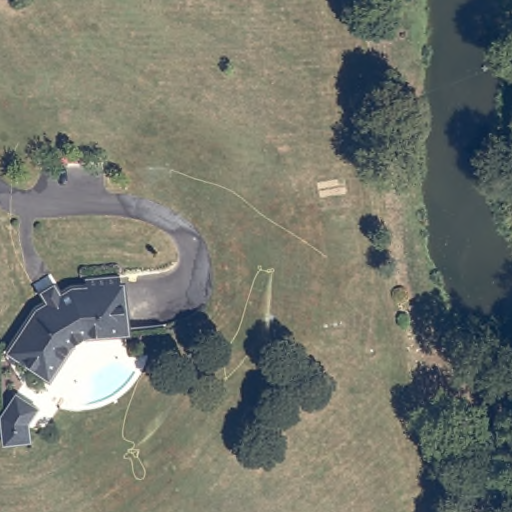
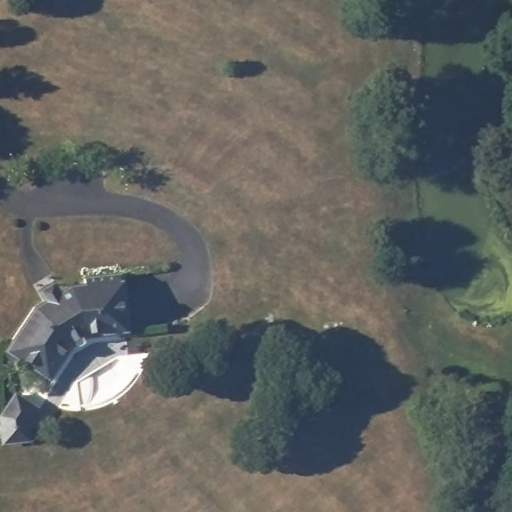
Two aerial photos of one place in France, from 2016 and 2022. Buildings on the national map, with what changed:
unchanged [(27,319),(37,295),(68,286),(132,282),(137,339),(89,342),(42,386),(3,359),(27,319)]
unchanged [(28,444),(0,447),(0,413),(14,401),(34,405),(27,419),(28,444)]

